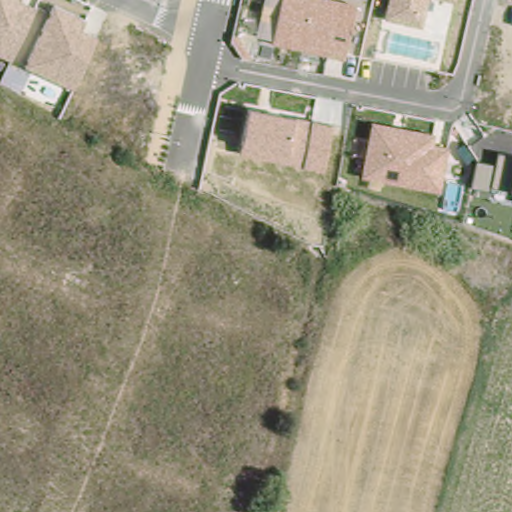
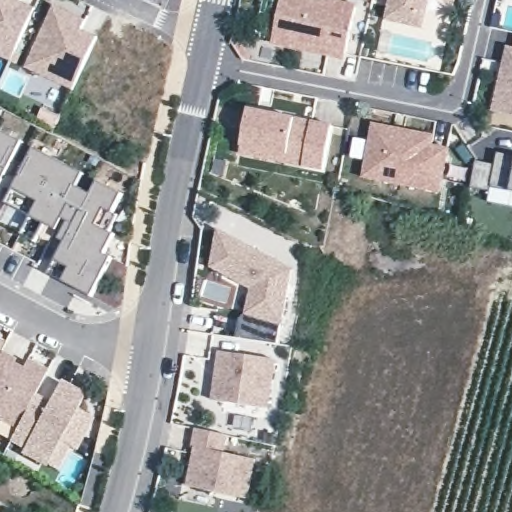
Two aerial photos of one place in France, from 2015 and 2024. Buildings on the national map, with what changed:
unchanged [(21,1),(35,8),(11,61),(0,55),(0,0),(22,0),(21,1)]
unchanged [(357,4),(345,60),(271,45),(273,39),(256,35),(264,0),(341,0),(357,4)]
unchanged [(424,29),(385,20),(389,0),(431,0),(424,29)]
unchanged [(456,4),(438,0),(456,0),(456,4)]
unchanged [(88,19),(83,30),(99,38),(75,90),(24,67),(55,5),(88,19)]
new [(512,42),(512,111),(492,106),(501,67),(508,41),(512,42)]
unchanged [(296,117),(335,123),(327,170),(240,155),(250,108),(296,117)]
unchanged [(437,134),(434,146),(450,149),(442,193),(361,178),(372,122),(437,134)]
new [(93,196),(100,182),(122,194),(114,212),(118,215),(108,232),(113,235),(104,255),(111,259),(92,297),(49,274),(66,242),(60,240),(70,221),(64,218),(57,229),(45,223),(35,243),(22,236),(32,216),(6,204),(19,178),(8,171),(0,186),(0,130),(22,142),(14,160),(25,166),(36,149),(83,174),(76,187),(93,196)]
unchanged [(510,191),(492,188),(491,191),(470,186),(476,160),(496,164),(499,152),(512,155),(512,191),(510,191)]
new [(276,345),(236,338),(251,290),(211,270),(219,229),(293,270),(276,345)]
new [(7,349),(3,358),(0,362),(0,345),(7,349)]
new [(252,407),(227,403),(217,401),(224,352),(279,360),(273,398),(272,409),(252,407)]
new [(3,358),(16,365),(14,369),(23,374),(28,365),(48,376),(34,402),(18,433),(0,423),(0,362),(3,358)]
new [(34,402),(43,407),(48,398),(53,401),(60,388),(85,401),(77,415),(88,421),(80,436),(83,437),(74,454),(60,446),(48,469),(24,456),(26,451),(12,444),(18,433),(34,402)]
new [(199,447),(196,447),(201,428),(233,435),(228,453),(260,459),(251,498),(191,486),(199,447)]

